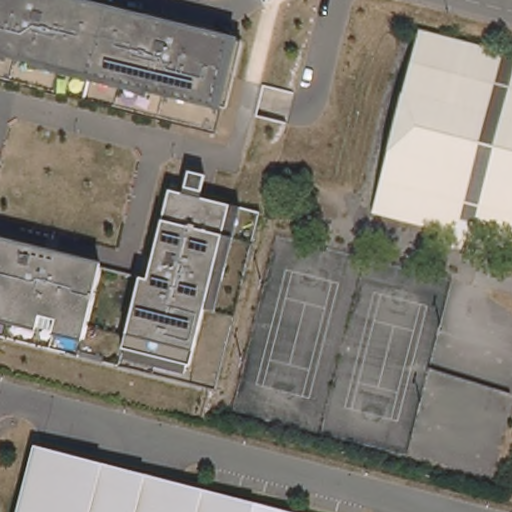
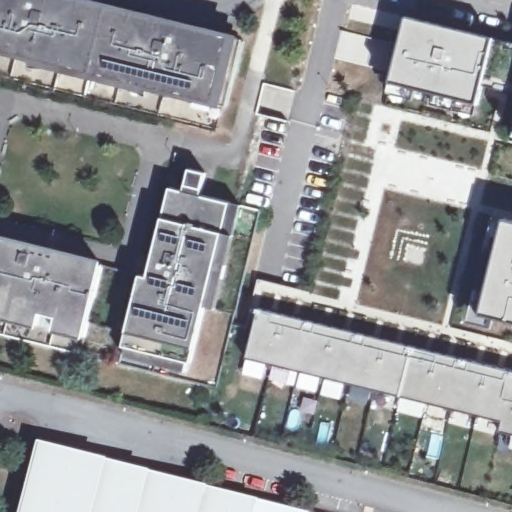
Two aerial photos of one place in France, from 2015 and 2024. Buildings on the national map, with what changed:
unchanged [(78,0),(87,0),(97,2),(95,10),(112,14),(113,6),(131,10),(131,14),(161,21),(161,20),(179,24),(180,19),(237,33),(237,35),(243,37),(234,74),(227,72),(220,101),(220,102),(119,77),(121,70),(92,62),(90,70),(87,69),(90,62),(60,55),(59,61),(0,47),(0,0),(74,0),(78,1),(78,0)]
new [(492,38),(512,43),(512,92),(482,85),(477,105),(392,81),(408,18),(492,38)]
demolished [(492,241),(490,251),(469,246),(470,243),(459,240),(459,244),(437,237),(440,226),(374,210),(421,29),(512,52),(512,246),(492,241)]
unchanged [(161,211),(161,210),(167,188),(181,191),(186,170),(189,170),(195,171),(199,172),(202,174),(197,195),(227,203),(237,205),(212,310),(202,306),(187,363),(164,357),(166,351),(144,346),(142,352),(120,346),(122,334),(122,333),(137,275),(145,277),(161,211)]
new [(482,312),(505,220),(512,222),(512,321),(482,312)]
unchanged [(88,325),(58,318),(0,303),(0,240),(1,240),(27,247),(26,251),(57,259),(58,255),(103,265),(89,324),(88,325)]
new [(501,432),(503,422),(247,359),(260,308),(286,315),(292,287),(311,292),(304,320),(512,371),(512,435),(501,432)]
unchanged [(41,447),(102,463),(100,473),(139,484),(142,473),(183,484),(185,477),(204,482),(202,489),(292,512),(24,512),(41,447)]

